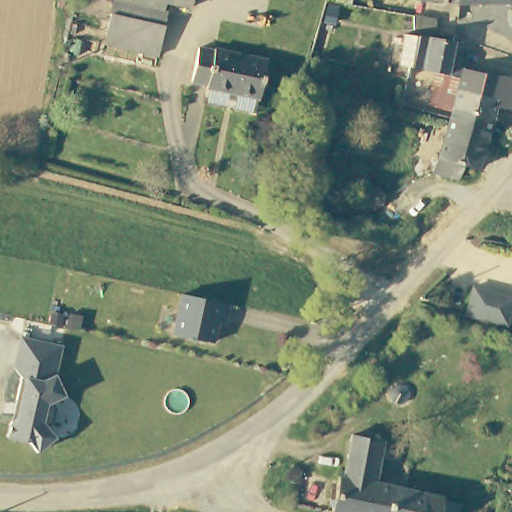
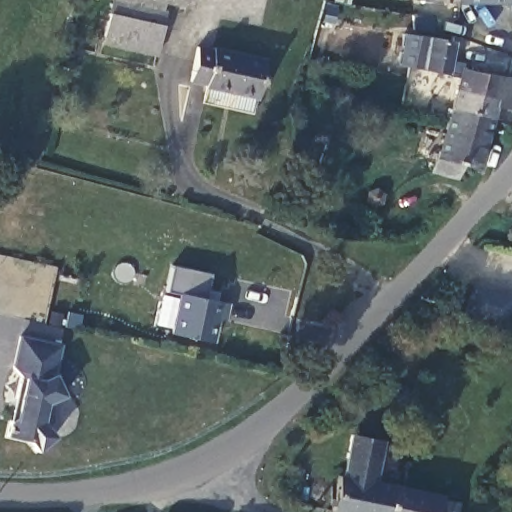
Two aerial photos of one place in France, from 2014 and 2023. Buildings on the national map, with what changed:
unchanged [(165,3),(164,7),(160,26),(109,14),(112,0),(192,0),(191,7),(165,3)]
unchanged [(414,0),(459,0),(458,6),(414,3),(414,0)]
unchanged [(489,8),(458,6),(459,0),(512,0),(512,7),(489,8)]
unchanged [(164,26),(156,55),(103,43),(109,14),(160,26),(164,26)]
unchanged [(450,73),(441,71),(416,67),(403,65),(408,33),(422,36),(456,42),(450,73)]
unchanged [(204,103),(207,88),(208,85),(191,81),(198,47),(214,51),(214,48),(266,59),(258,98),(256,98),(254,113),(204,103)]
unchanged [(467,69),(512,77),(512,106),(502,104),(497,121),(454,111),(464,79),(467,69)]
unchanged [(483,170),(466,165),(462,178),(436,171),(452,119),(452,117),(454,111),(497,121),(483,170)]
unchanged [(501,245),(503,240),(507,237),(512,238),(512,253),(511,253),(503,252),(501,245)]
new [(173,267),(212,275),(207,300),(187,295),(168,292),(173,267)]
unchanged [(474,288),(512,299),(512,314),(507,328),(475,318),(466,316),(474,288)]
unchanged [(187,295),(233,305),(230,322),(223,320),(218,344),(178,335),(187,295)]
unchanged [(11,417),(17,413),(21,395),(16,394),(21,372),(15,362),(20,336),(59,345),(53,375),(64,393),(53,400),(58,407),(54,421),(48,425),(55,436),(36,448),(29,437),(8,432),(11,417)]
unchanged [(386,398),(392,394),(395,395),(400,403),(394,416),(380,408),(386,398)]
unchanged [(335,476),(339,477),(346,435),(378,440),(370,484),(387,487),(382,512),(330,512),(335,476)]
unchanged [(387,487),(402,489),(440,496),(437,512),(382,512),(387,487)]

